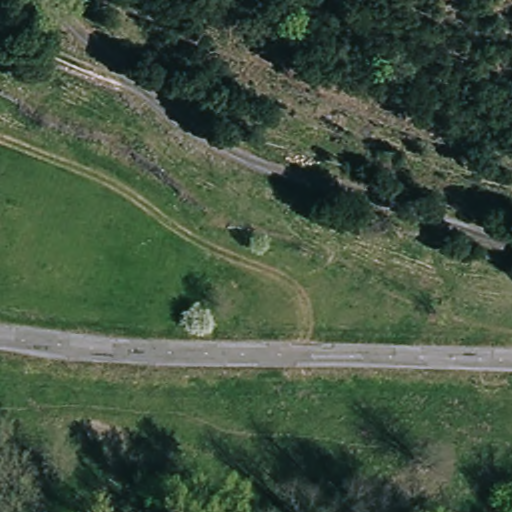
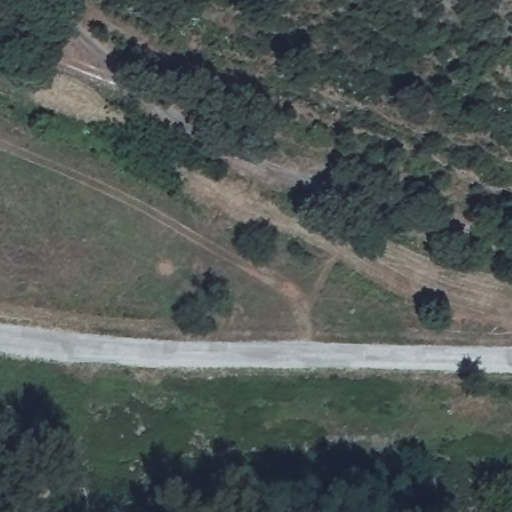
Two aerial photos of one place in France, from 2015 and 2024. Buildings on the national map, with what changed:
[]

